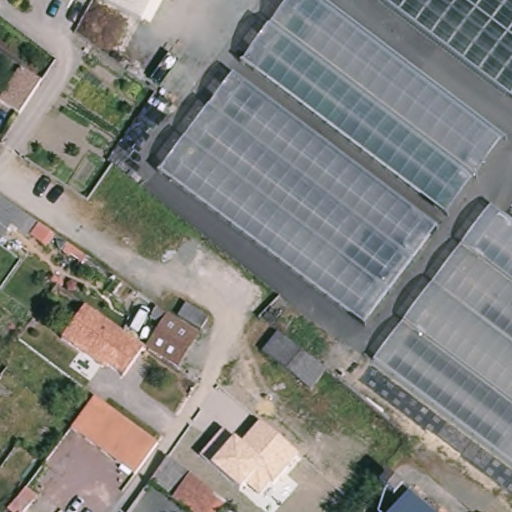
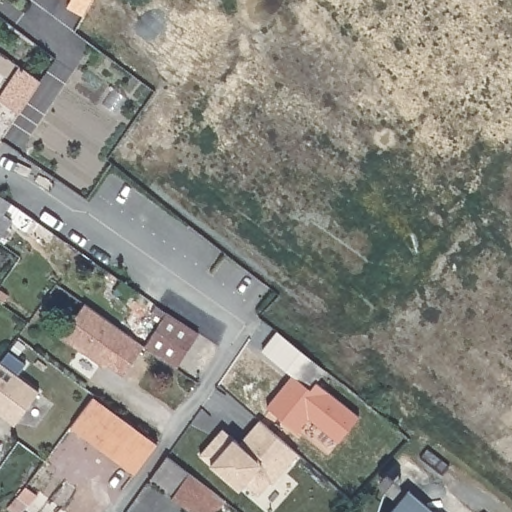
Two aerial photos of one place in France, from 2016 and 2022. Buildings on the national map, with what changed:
demolished [(502,142),(374,309),(175,163),(297,0),(314,0),(502,142)]
demolished [(380,0),(512,0),(512,97),(380,0)]
unchanged [(45,75),(25,107),(5,94),(26,60),(45,75)]
unchanged [(20,213),(10,227),(0,241),(0,200),(4,203),(20,213)]
demolished [(486,206),(512,225),(512,470),(365,364),(486,206)]
unchanged [(182,303),(205,318),(196,330),(174,314),(182,303)]
unchanged [(107,364),(104,370),(63,338),(85,307),(144,347),(124,376),(107,364)]
unchanged [(197,337),(175,370),(144,350),(167,316),(197,337)]
unchanged [(312,364),(327,377),(313,394),(265,353),(278,336),(312,364)]
new [(25,364),(17,375),(39,391),(14,425),(0,414),(0,362),(8,351),(25,364)]
unchanged [(75,427),(96,399),(127,423),(134,428),(148,439),(157,447),(138,472),(75,427)]
unchanged [(246,483),(240,491),(210,466),(201,456),(224,432),(232,439),(240,445),(258,422),(300,455),(274,485),(271,483),(259,497),(246,483)]
unchanged [(219,512),(188,512),(147,485),(167,459),(226,502),(219,512)]
unchanged [(381,481),(395,493),(387,502),(373,490),(381,481)]
unchanged [(422,512),(390,512),(403,496),(422,512)]

